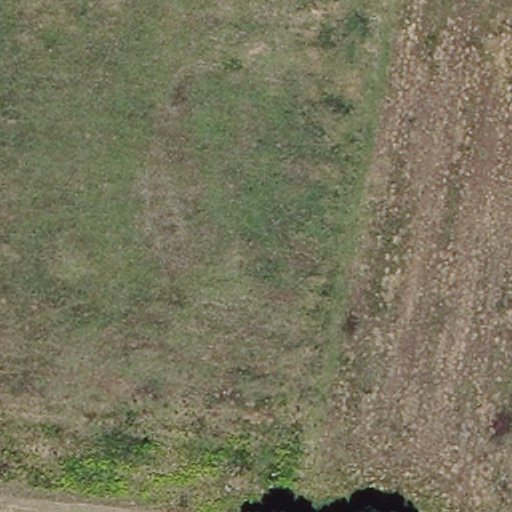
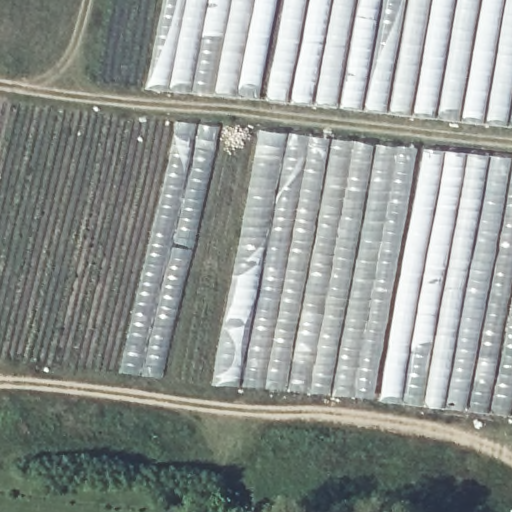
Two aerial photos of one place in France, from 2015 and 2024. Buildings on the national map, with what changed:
new [(164,0),(512,0),(512,128),(421,118),(353,112),(235,98),(187,94),(145,87),(157,36),(164,0)]
new [(145,252),(165,176),(175,121),(218,127),(204,202),(190,265),(173,323),(162,379),(118,372),(145,252)]
new [(257,129),(329,138),(291,347),(286,388),(226,385),(226,351),(218,350),(257,129)]
new [(291,347),(329,138),(374,144),(344,306),(330,393),(286,388),(291,347)]
new [(344,306),(374,144),(418,147),(379,363),(374,397),(330,393),(344,306)]
new [(418,147),(512,157),(512,416),(439,407),(374,397),(379,363),(418,147)]

